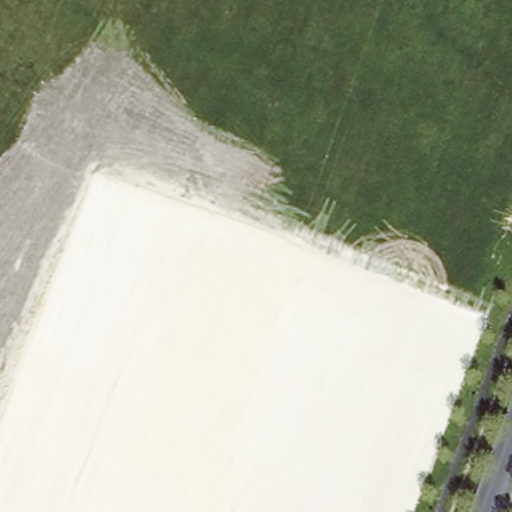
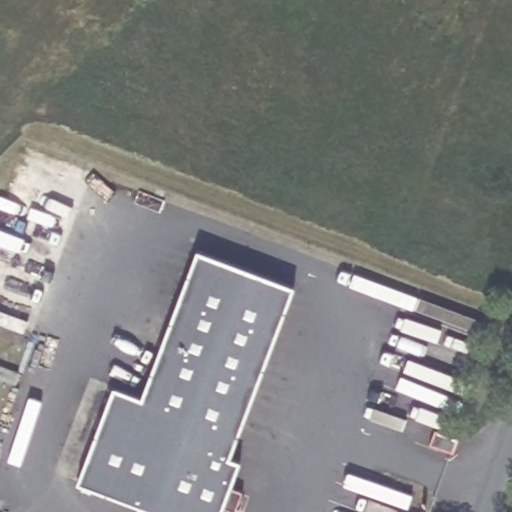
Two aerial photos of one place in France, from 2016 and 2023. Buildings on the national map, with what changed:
new [(244,459),(234,486),(245,490),(236,512),(233,512),(224,508),(223,512),(157,512),(78,482),(113,385),(143,395),(199,248),(297,285),(232,456),(244,459)]

